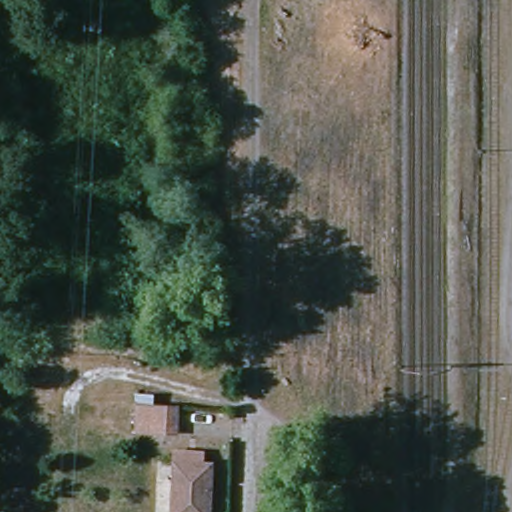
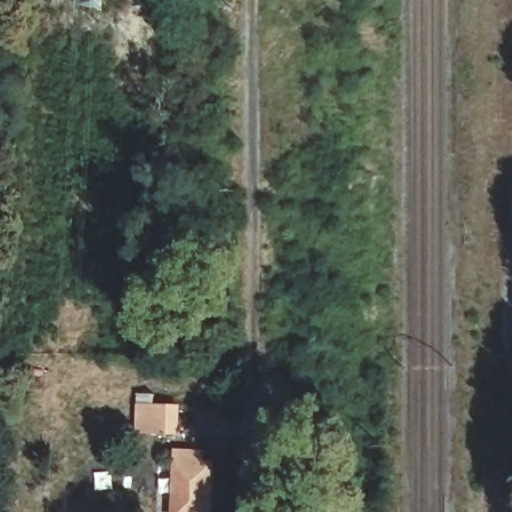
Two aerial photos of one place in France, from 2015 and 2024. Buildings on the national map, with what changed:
unchanged [(166,425),(144,423),(144,401),(166,402),(166,425)]
unchanged [(206,510),(171,509),(171,457),(208,458),(206,510)]

